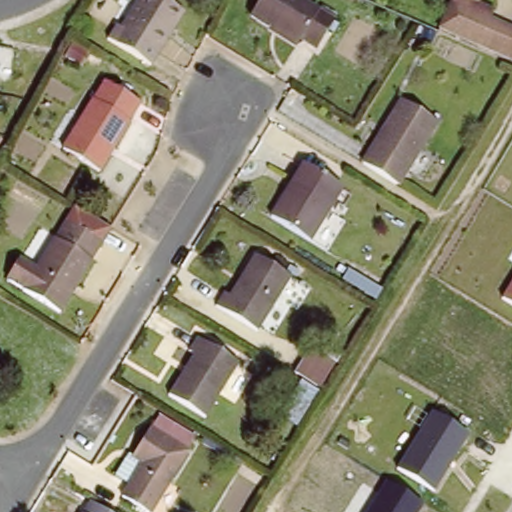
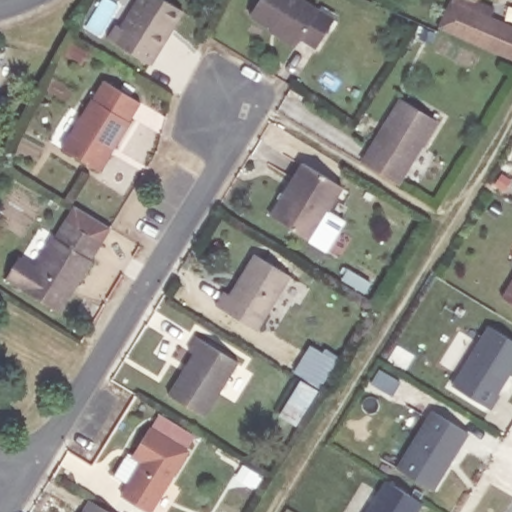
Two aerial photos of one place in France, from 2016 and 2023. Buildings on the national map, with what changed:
unchanged [(164,50),(153,67),(110,41),(120,24),(129,29),(145,0),(169,0),(189,12),(167,51),(164,50)]
unchanged [(320,47),(305,39),(302,44),(255,15),(264,0),(305,0),(337,20),(320,47)]
unchanged [(453,0),(472,0),(497,11),(493,20),(512,29),(512,59),(440,30),(453,0)]
unchanged [(90,50),(84,60),(66,50),(72,40),(90,50)]
unchanged [(145,105),(102,172),(64,149),(107,80),(145,105)]
unchanged [(362,154),(398,94),(434,114),(398,175),(362,154)]
unchanged [(347,189),(332,215),(349,225),(332,254),(315,243),(270,216),(304,161),(347,189)]
unchanged [(107,244),(65,314),(9,280),(22,255),(42,266),(69,220),(107,244)]
unchanged [(289,284),(255,338),(207,308),(215,295),(224,300),(249,260),(289,284)]
unchanged [(501,298),(512,280),(512,305),(501,298)]
new [(487,326),(512,341),(512,372),(499,393),(501,395),(492,411),(452,386),(487,326)]
unchanged [(240,361),(207,415),(171,392),(196,352),(190,348),(197,335),(240,361)]
unchanged [(310,348),(335,363),(320,388),(294,372),(310,348)]
unchanged [(319,392),(297,427),(278,416),(299,380),(319,392)]
unchanged [(470,434),(435,493),(397,468),(430,412),(470,434)]
unchanged [(130,502),(139,488),(122,480),(137,453),(142,455),(155,431),(165,416),(202,439),(192,454),(195,456),(162,512),(149,512),(130,502)]
unchanged [(422,505),(418,512),(367,512),(385,481),(422,505)]
unchanged [(96,503),(111,512),(90,512),(96,503)]

